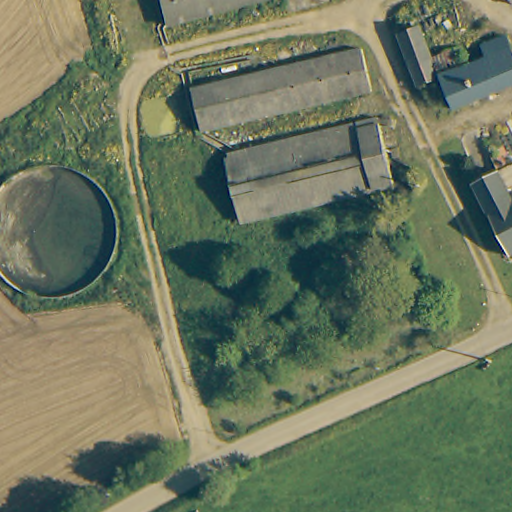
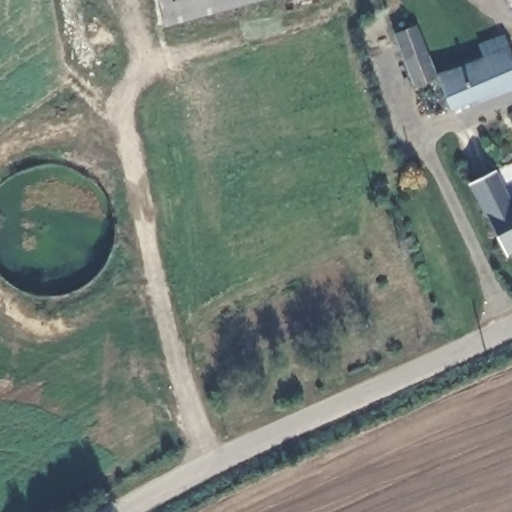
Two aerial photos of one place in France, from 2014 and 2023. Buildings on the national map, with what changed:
unchanged [(166,23),(161,0),(255,0),(166,23)]
unchanged [(499,0),(512,0),(512,7),(506,10),(499,0)]
unchanged [(483,50),(479,40),(501,31),(512,55),(512,79),(450,104),(439,77),(418,85),(397,34),(419,26),(436,70),(483,50)]
demolished [(366,86),(198,127),(189,86),(356,46),(366,86)]
demolished [(221,153),(374,119),(390,180),(237,217),(221,153)]
unchanged [(512,250),(503,254),(467,183),(491,170),(507,202),(512,200),(512,250)]

